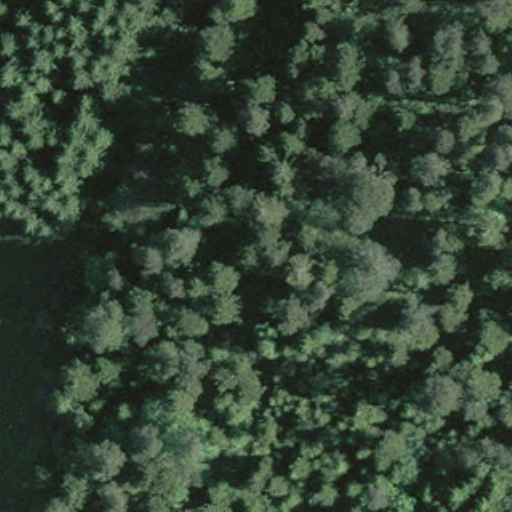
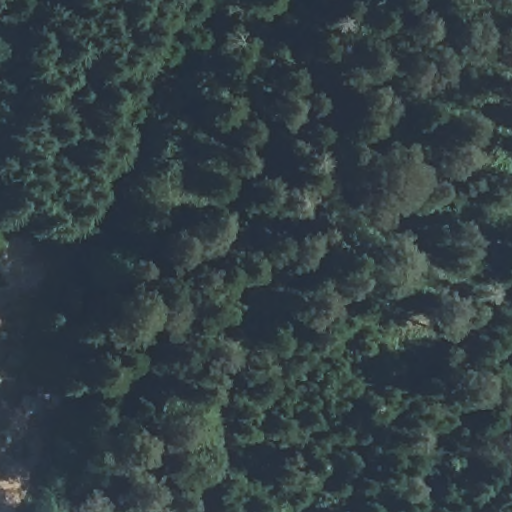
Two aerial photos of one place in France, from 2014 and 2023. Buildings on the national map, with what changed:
[]

